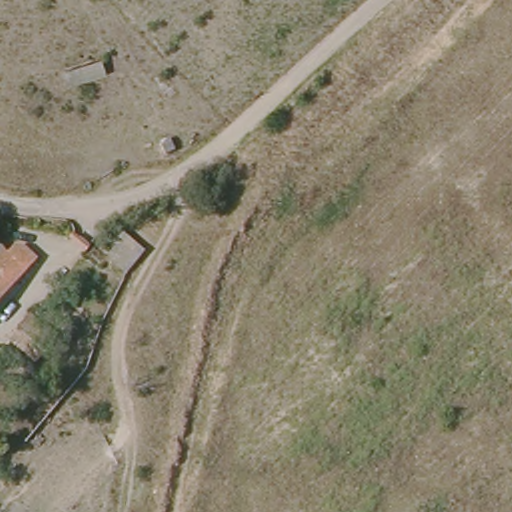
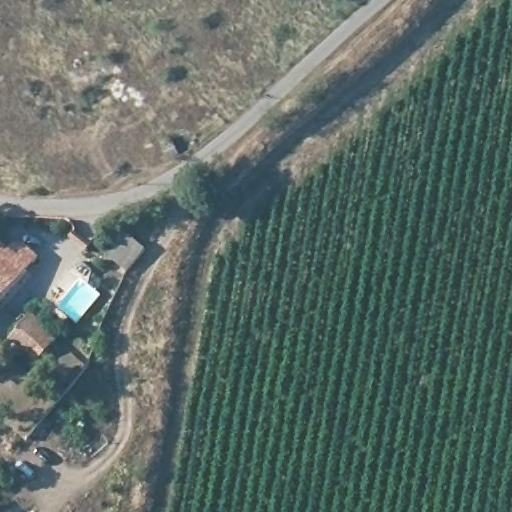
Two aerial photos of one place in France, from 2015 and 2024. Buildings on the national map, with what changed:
unchanged [(119,227),(146,248),(127,273),(98,250),(119,227)]
unchanged [(1,252),(8,247),(16,248),(23,251),(32,259),(0,297),(0,251),(1,252)]
unchanged [(30,319),(87,372),(76,386),(54,365),(45,372),(12,338),(30,319)]

